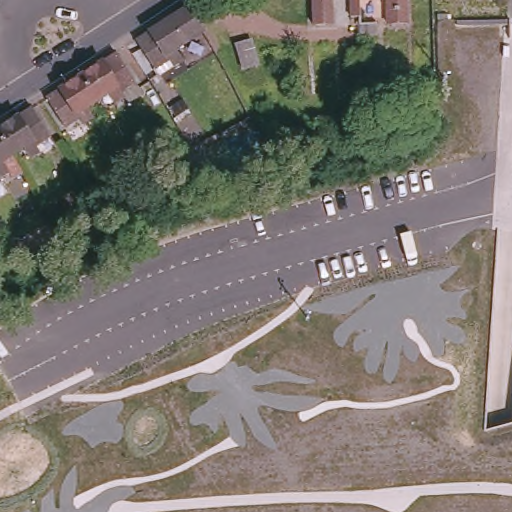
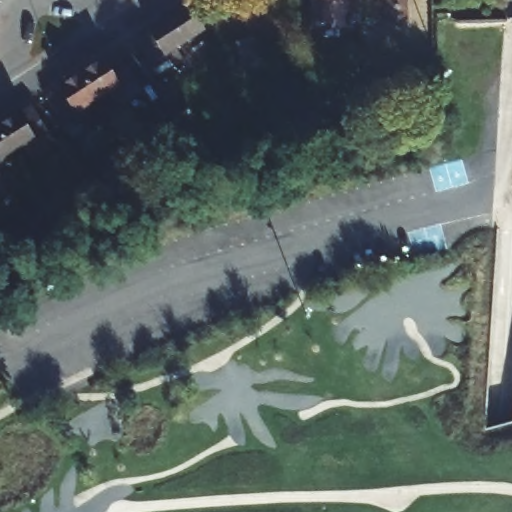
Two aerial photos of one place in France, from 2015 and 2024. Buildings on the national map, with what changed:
unchanged [(185,50),(175,57),(171,51),(156,60),(137,31),(175,7),(186,0),(200,25),(178,39),(185,50)]
unchanged [(331,17),(314,18),(313,0),(330,0),(331,17)]
unchanged [(349,6),(349,0),(358,0),(358,5),(375,5),(375,16),(359,16),(341,17),(340,6),(349,6)]
unchanged [(387,15),(386,0),(406,0),(406,15),(387,15)]
unchanged [(84,67),(110,50),(130,81),(115,90),(119,96),(109,102),(100,89),(90,96),(75,72),(84,67)]
unchanged [(89,116),(78,122),(74,116),(60,125),(42,94),(75,72),(90,96),(80,103),(89,116)]
unchanged [(22,103),(40,134),(26,144),(29,150),(20,156),(12,142),(0,150),(0,117),(22,103)]

